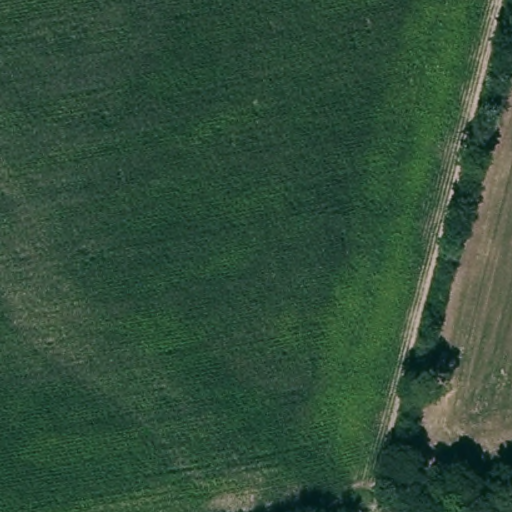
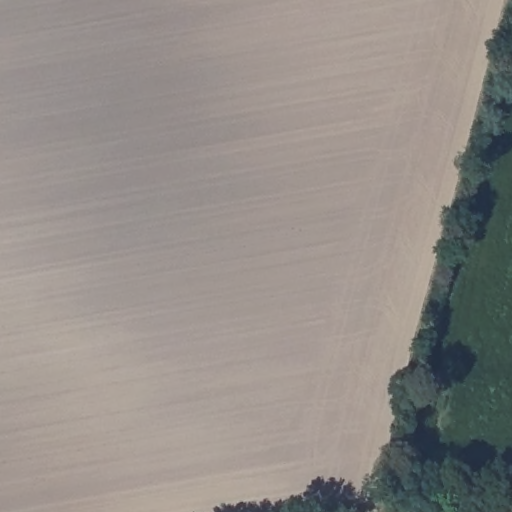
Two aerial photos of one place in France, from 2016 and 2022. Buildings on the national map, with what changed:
[]

